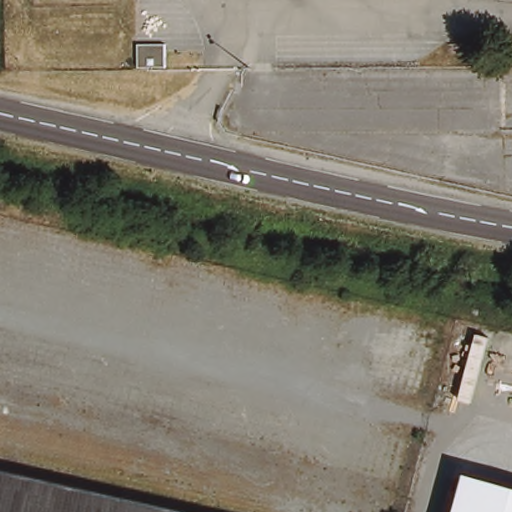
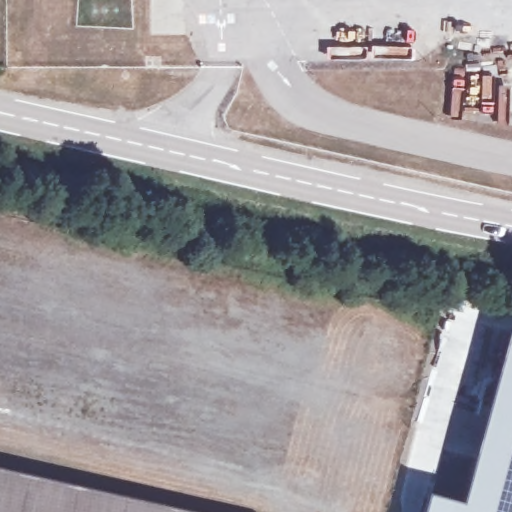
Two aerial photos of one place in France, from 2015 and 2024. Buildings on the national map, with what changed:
unchanged [(171,56),(173,79),(143,81),(141,59),(171,56)]
new [(509,331),(512,331),(512,481),(472,469),(509,331)]
unchanged [(472,469),(512,481),(512,512),(459,512),(472,469)]
unchanged [(0,475),(157,512),(0,512),(0,475)]

